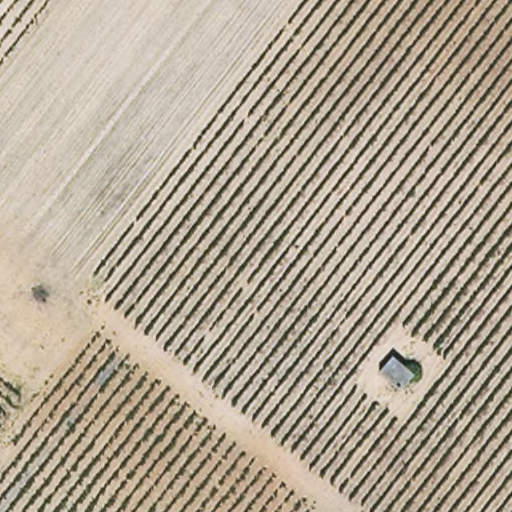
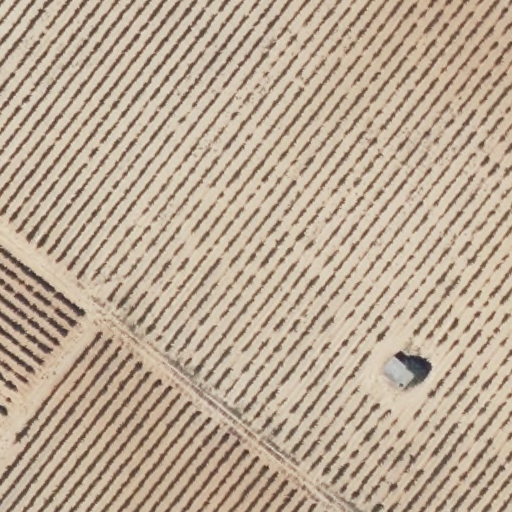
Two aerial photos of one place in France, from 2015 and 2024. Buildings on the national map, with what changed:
unchanged [(393,354),(414,372),(399,390),(378,371),(393,354)]

